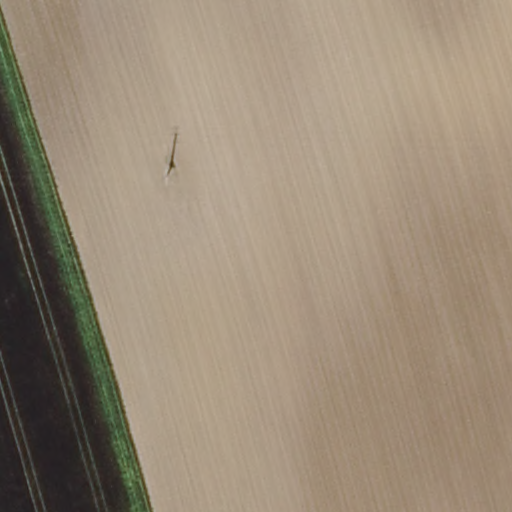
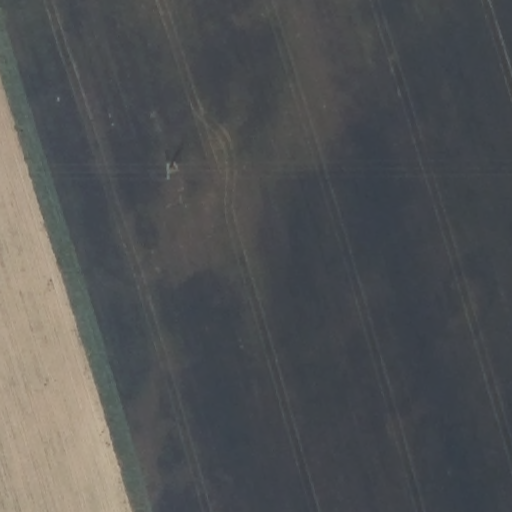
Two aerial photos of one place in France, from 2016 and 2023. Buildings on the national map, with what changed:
[]

